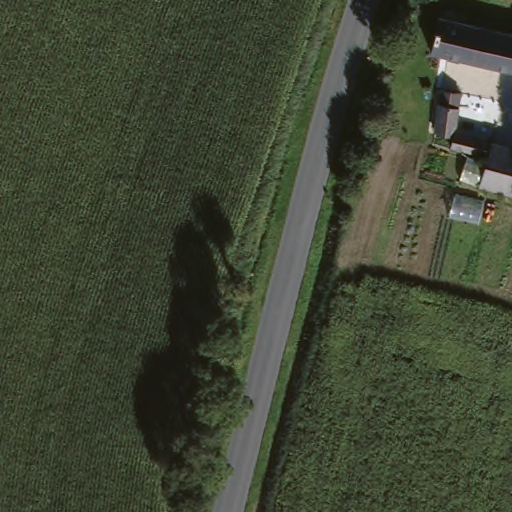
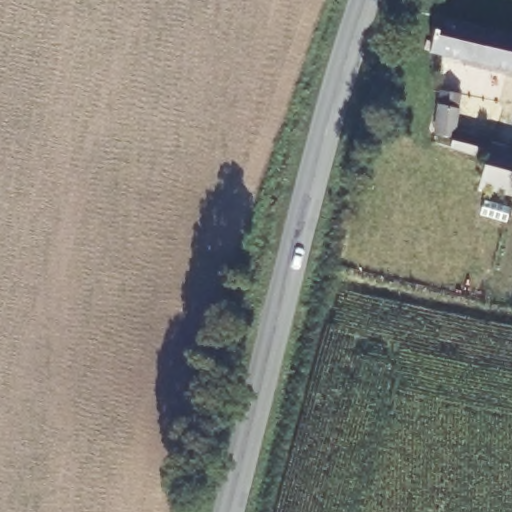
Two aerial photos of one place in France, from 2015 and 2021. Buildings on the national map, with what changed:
unchanged [(512,33),(512,73),(428,53),(440,17),(512,33)]
unchanged [(512,150),(512,199),(485,191),(493,164),(462,152),(461,142),(442,140),(447,94),(465,95),(462,133),(512,150)]

